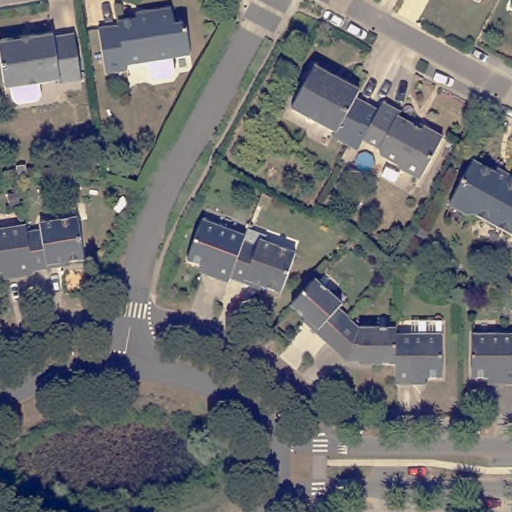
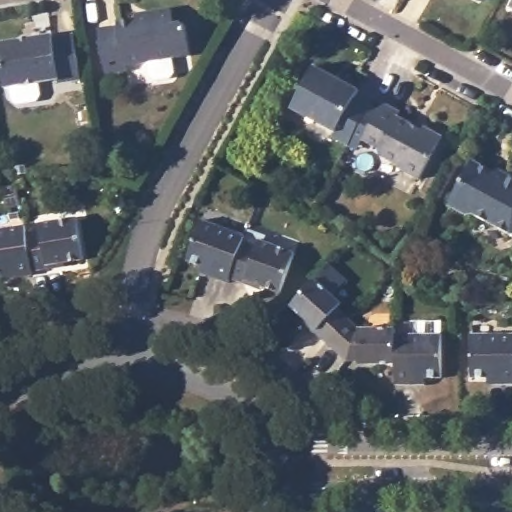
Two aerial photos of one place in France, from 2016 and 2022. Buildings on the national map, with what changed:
unchanged [(482,2),(479,0),(482,0),(482,2)]
unchanged [(510,0),(512,0),(512,7),(507,5),(510,0)]
unchanged [(175,74),(160,76),(155,73),(152,56),(124,60),(125,66),(105,68),(99,22),(117,20),(117,16),(150,11),(151,6),(172,4),(174,24),(187,21),(192,50),(176,52),(178,70),(175,74)]
unchanged [(80,82),(57,85),(56,81),(7,89),(0,47),(0,39),(41,32),(40,27),(43,22),(60,20),(65,22),(67,35),(72,34),(80,82)]
unchanged [(327,131),(331,127),(292,105),(313,64),(356,86),(351,95),(367,105),(348,143),(327,131)]
unchanged [(383,99),(399,105),(396,111),(417,124),(418,121),(441,134),(417,174),(375,152),(377,146),(362,136),(383,99)]
unchanged [(467,212),(458,207),(478,166),(508,180),(511,177),(512,177),(512,226),(482,212),(467,212)]
unchanged [(209,271),(211,265),(189,257),(202,217),(247,232),(232,273),(230,280),(209,271)]
unchanged [(43,229),(42,222),(75,219),(80,260),(49,264),(50,268),(33,270),(29,230),(43,229)]
unchanged [(15,277),(14,271),(0,272),(0,227),(29,223),(29,230),(33,270),(34,275),(15,277)]
unchanged [(291,247),(277,282),(247,272),(245,277),(232,273),(247,232),(250,224),(267,231),(265,239),(291,247)]
unchanged [(313,335),(315,328),(295,307),(317,282),(340,302),(336,306),(352,320),(328,347),(313,335)]
unchanged [(346,362),(328,347),(352,320),(358,327),(395,328),(395,336),(395,366),(346,362)]
unchanged [(499,373),(471,374),(472,332),(512,332),(512,380),(498,380),(499,373)]
unchanged [(441,336),(441,378),(416,378),(417,381),(395,382),(395,366),(395,336),(441,336)]

